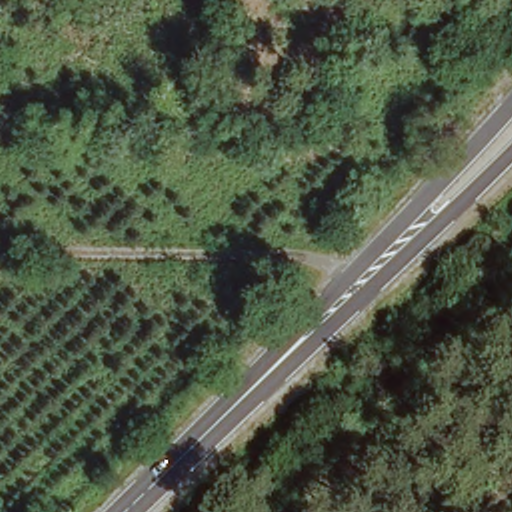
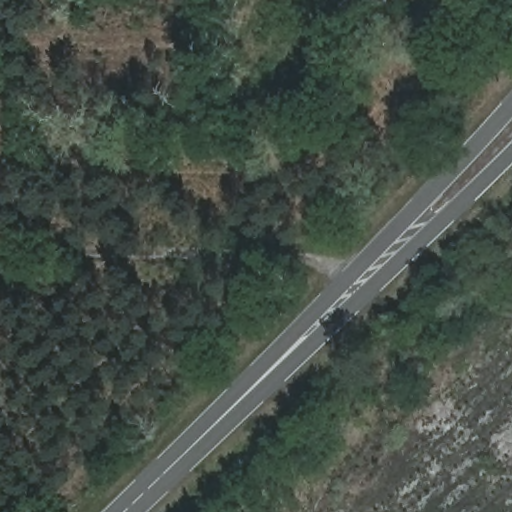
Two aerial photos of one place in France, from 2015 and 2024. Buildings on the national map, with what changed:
[]

